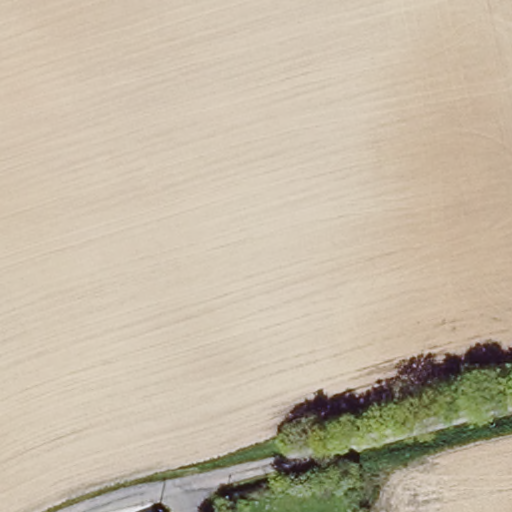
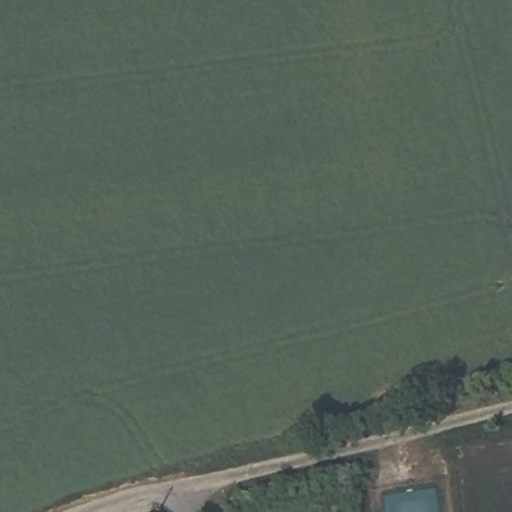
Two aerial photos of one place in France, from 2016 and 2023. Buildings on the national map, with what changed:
[]

